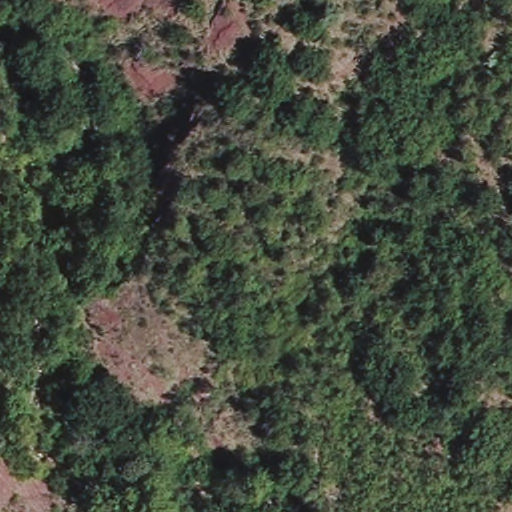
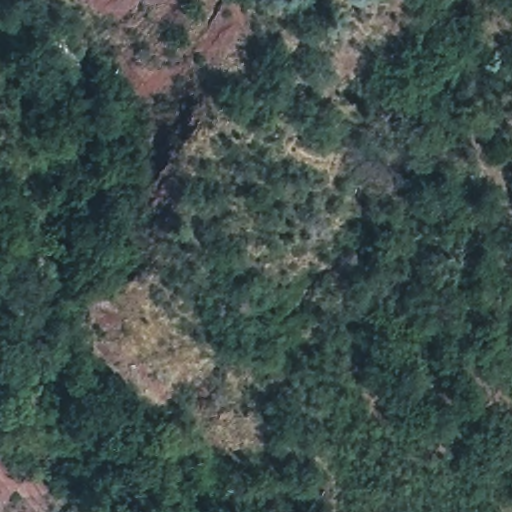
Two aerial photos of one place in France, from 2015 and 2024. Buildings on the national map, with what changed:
[]

